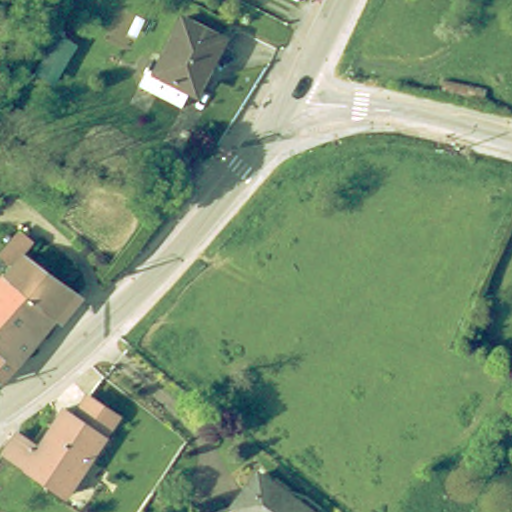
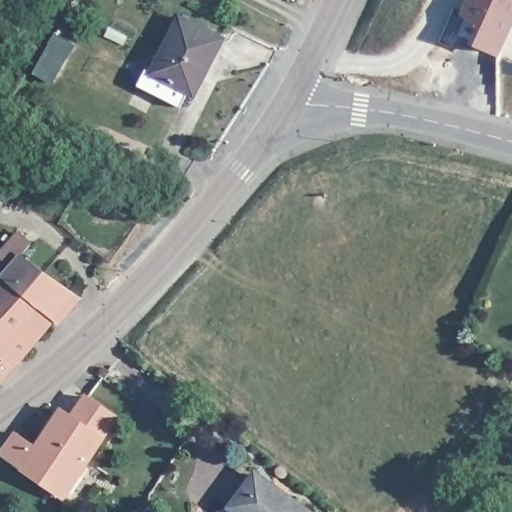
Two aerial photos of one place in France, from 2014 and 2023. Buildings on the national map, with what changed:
new [(512,26),(499,54),(457,33),(474,0),(512,0),(512,26)]
unchanged [(232,37),(216,69),(209,65),(189,104),(146,82),(155,65),(162,68),(189,17),(232,37)]
unchanged [(9,271),(19,258),(4,247),(22,223),(37,234),(25,249),(77,287),(63,306),(0,389),(0,281),(9,271)]
unchanged [(7,452),(24,434),(44,448),(70,412),(80,418),(94,398),(123,418),(109,439),(66,500),(7,452)]
unchanged [(265,475),(313,512),(247,512),(240,507),(265,475)]

